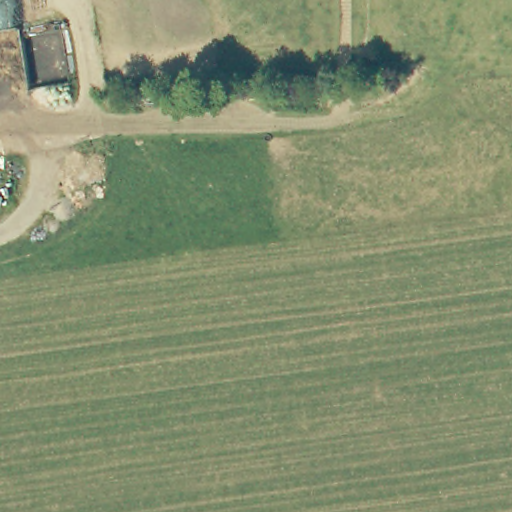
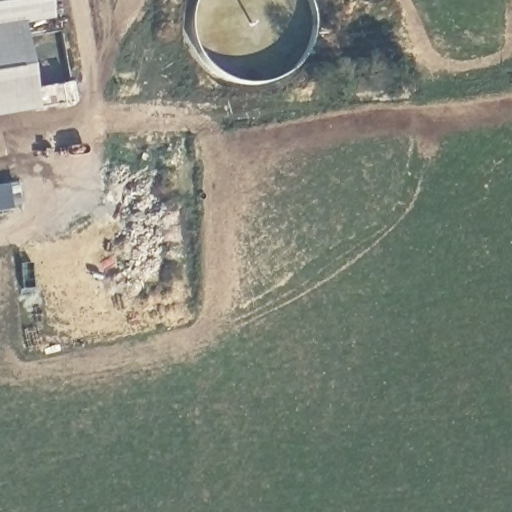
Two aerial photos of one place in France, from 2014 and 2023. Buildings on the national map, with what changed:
new [(22,26),(22,23),(0,26),(0,0),(48,0),(51,20),(22,26)]
new [(22,23),(36,111),(0,116),(0,26),(22,23)]

